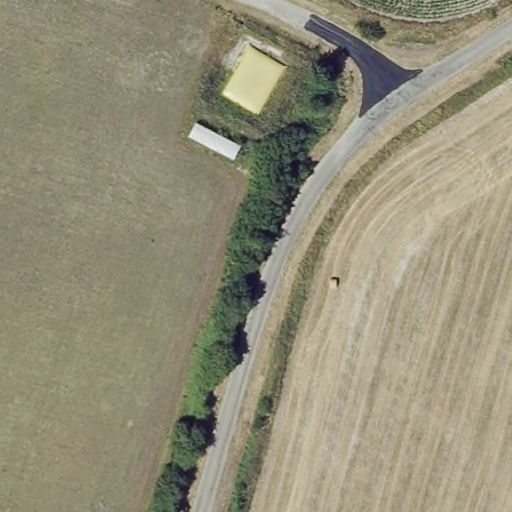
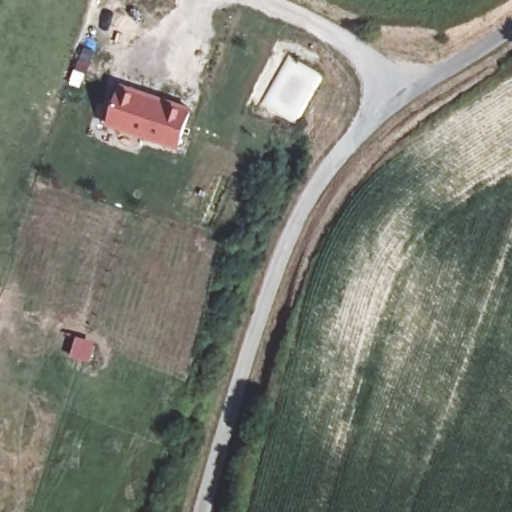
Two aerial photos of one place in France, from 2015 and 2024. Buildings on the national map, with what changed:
new [(107,125),(120,83),(192,109),(179,150),(107,125)]

